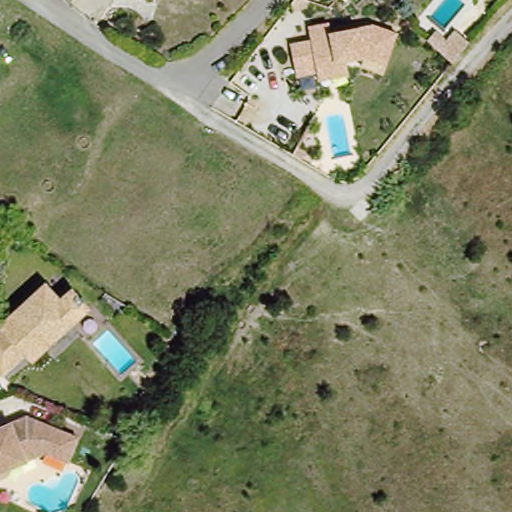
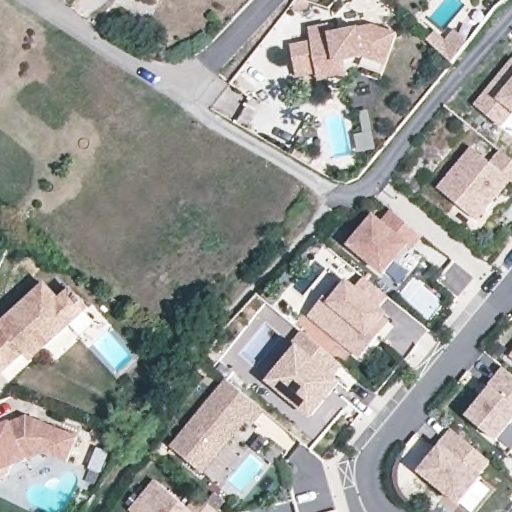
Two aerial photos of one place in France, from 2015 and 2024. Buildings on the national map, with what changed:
unchanged [(317,78),(317,72),(295,73),(291,42),(310,41),(312,35),(374,25),(399,35),(385,65),(364,57),(346,59),(349,74),(317,78)]
unchanged [(470,44),(451,64),(436,51),(454,32),(470,44)]
new [(512,118),(502,129),(477,108),(512,66),(512,118)]
new [(491,164),(502,151),(512,160),(512,182),(510,180),(476,221),(438,189),(471,148),(491,164)]
new [(393,261),(384,273),(349,245),(372,217),(380,224),(392,210),(422,235),(411,248),(398,265),(393,261)]
new [(307,316),(337,281),(343,284),(347,279),(354,285),(364,277),(388,297),(380,306),(388,313),(386,315),(392,320),(360,359),(307,316)]
unchanged [(92,311),(32,361),(25,353),(2,373),(0,371),(0,335),(5,330),(3,327),(51,286),(65,302),(76,294),(92,311)]
new [(299,348),(294,344),(305,332),(343,364),(333,376),(341,382),(313,415),(272,381),(299,348)]
new [(512,423),(498,441),(465,415),(492,385),(489,383),(503,366),(512,374),(512,423)]
new [(229,381),(266,411),(252,425),(246,421),(204,473),(172,447),(229,381)]
unchanged [(9,477),(3,483),(0,483),(0,432),(32,420),(78,442),(67,466),(45,455),(11,469),(9,477)]
new [(452,430),(466,442),(487,459),(476,473),(479,475),(457,501),(418,470),(440,444),(452,430)]
new [(187,506),(197,494),(218,511),(218,512),(133,512),(129,509),(153,479),(187,506)]

